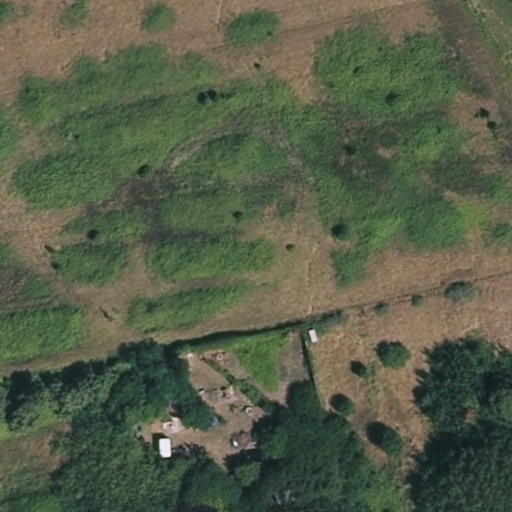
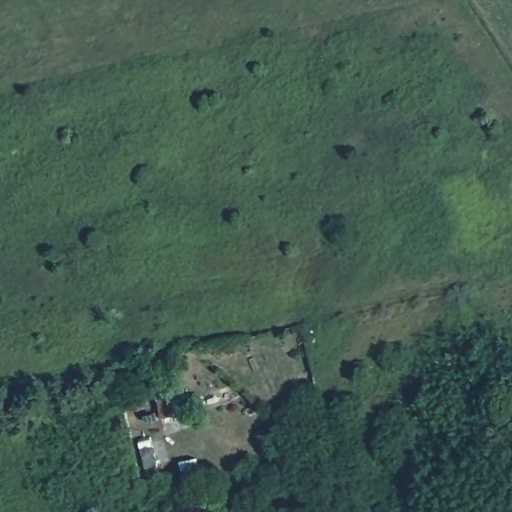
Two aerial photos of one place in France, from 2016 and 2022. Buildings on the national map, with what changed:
unchanged [(160,424),(154,395),(188,388),(194,416),(160,424)]

